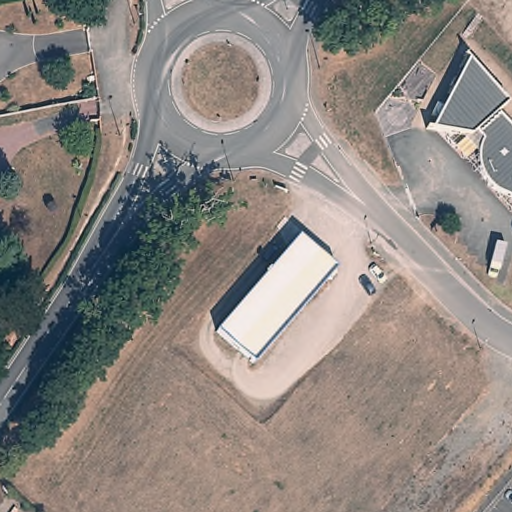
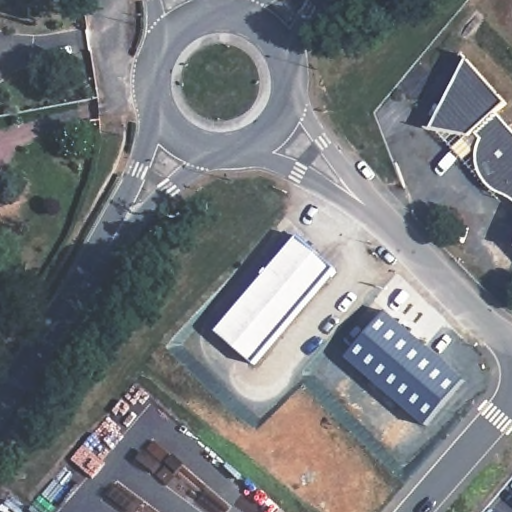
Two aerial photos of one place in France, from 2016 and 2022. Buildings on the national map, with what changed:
unchanged [(512,104),(503,113),(512,124),(512,197),(503,193),(497,189),(489,180),(486,175),(484,169),(482,162),(482,154),(483,148),(484,145),(487,139),(479,133),(475,136),(431,129),(469,55),(512,103),(512,104)]
unchanged [(337,269),(254,364),(216,331),(298,236),(337,269)]
new [(347,356),(386,310),(467,379),(427,426),(347,356)]

